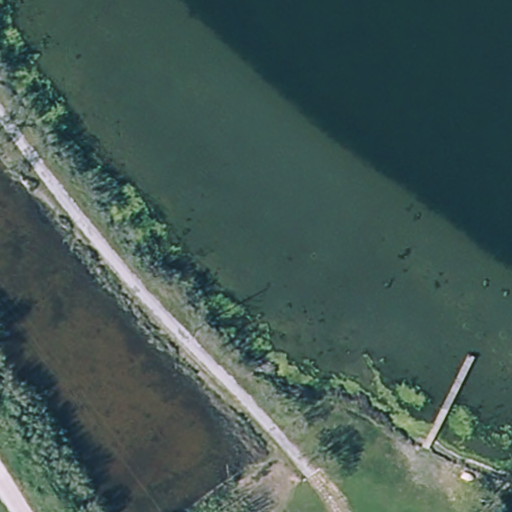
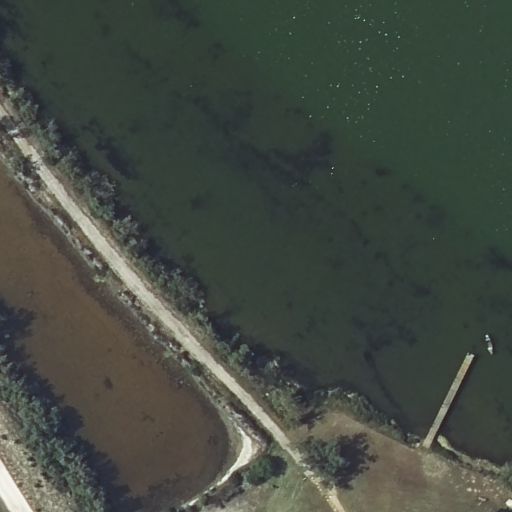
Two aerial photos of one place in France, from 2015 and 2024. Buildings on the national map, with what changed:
[]

